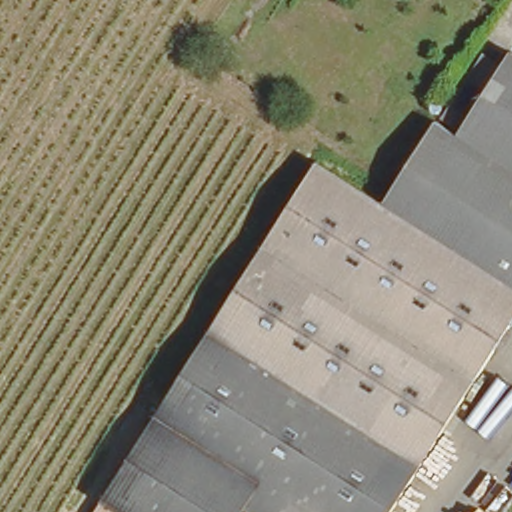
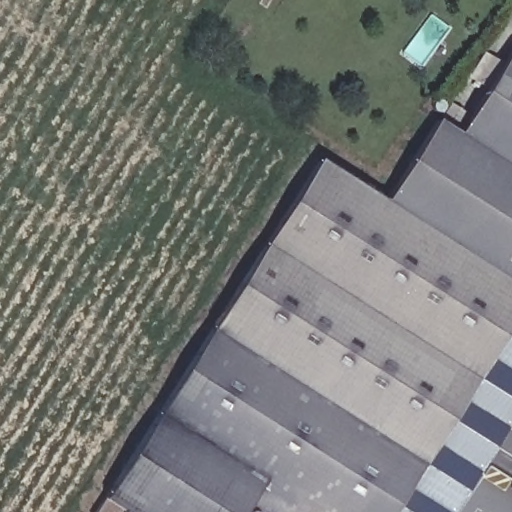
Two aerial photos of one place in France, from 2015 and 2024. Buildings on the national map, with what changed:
unchanged [(252,512),(244,507),(241,512),(119,512),(99,499),(317,160),(387,201),(438,118),(463,131),(512,53),(512,325),(393,512),(252,512)]
new [(451,512),(393,512),(496,350),(503,339),(512,345),(512,417),(451,512)]
new [(252,512),(241,512),(244,507),(252,512)]

